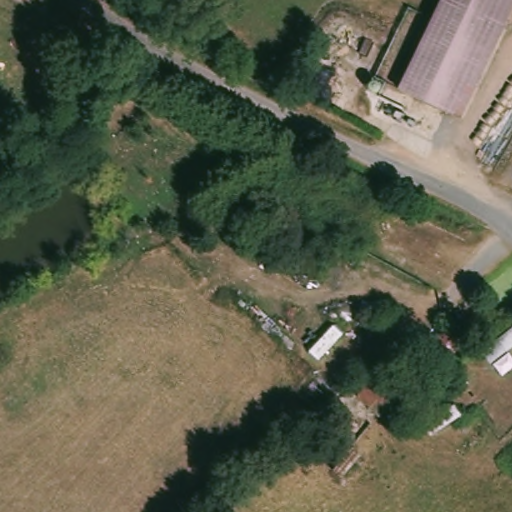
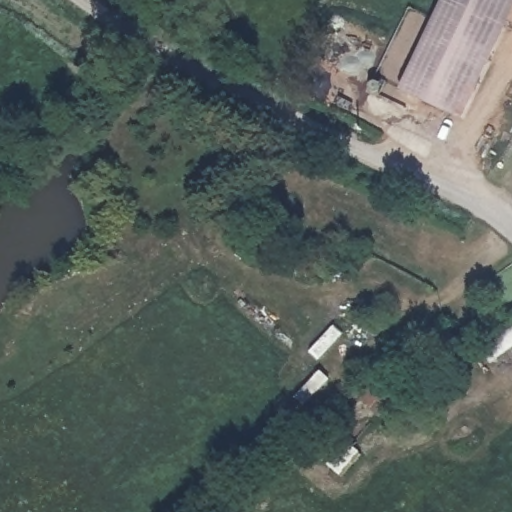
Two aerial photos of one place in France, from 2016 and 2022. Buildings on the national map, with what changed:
unchanged [(456,114),(412,92),(455,0),(456,0),(456,1),(500,20),(490,44),(456,114)]
unchanged [(500,20),(456,1),(456,0),(510,0),(500,20)]
unchanged [(466,345),(450,365),(433,354),(450,332),(466,345)]

